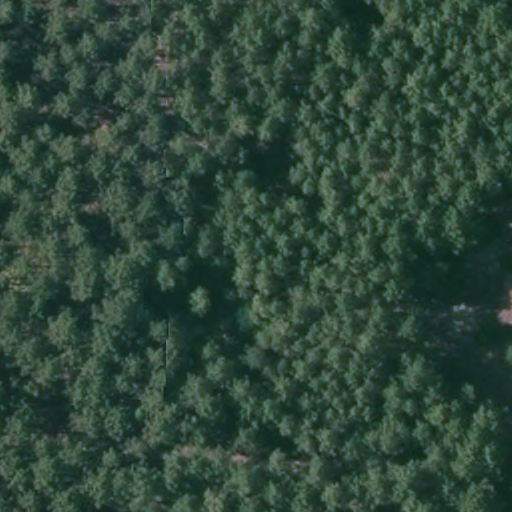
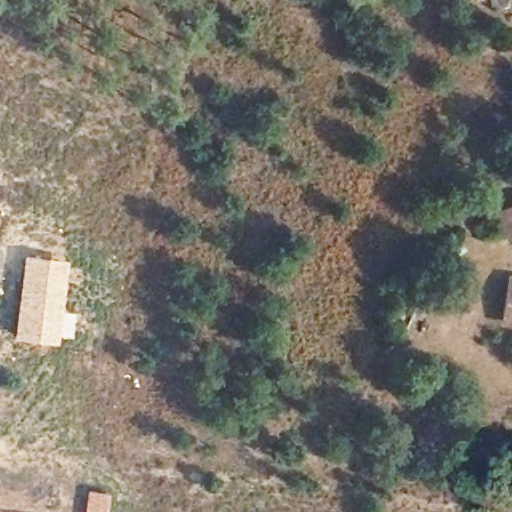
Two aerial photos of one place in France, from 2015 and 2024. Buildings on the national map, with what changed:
unchanged [(506,209),(512,206),(512,247),(503,251),(506,209)]
new [(11,339),(22,255),(67,261),(56,344),(11,339)]

